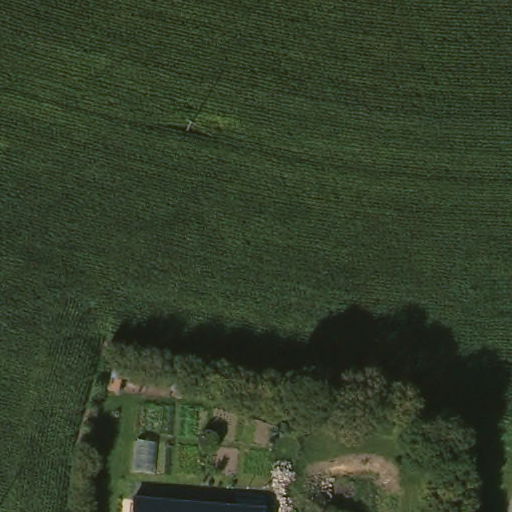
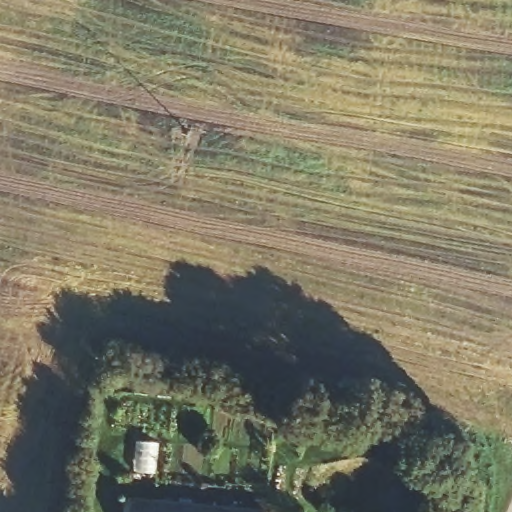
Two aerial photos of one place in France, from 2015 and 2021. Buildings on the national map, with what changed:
unchanged [(187,512),(141,512),(141,508),(187,512)]

